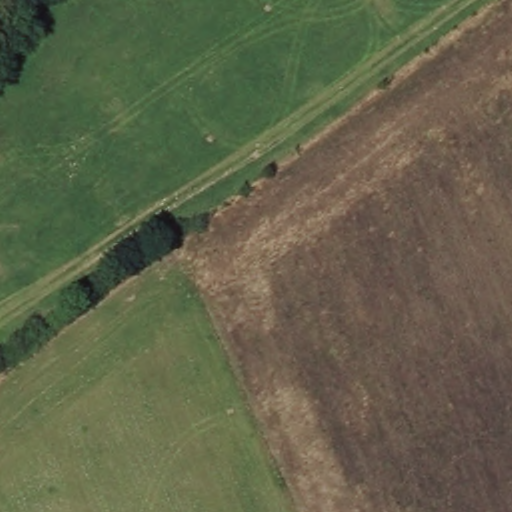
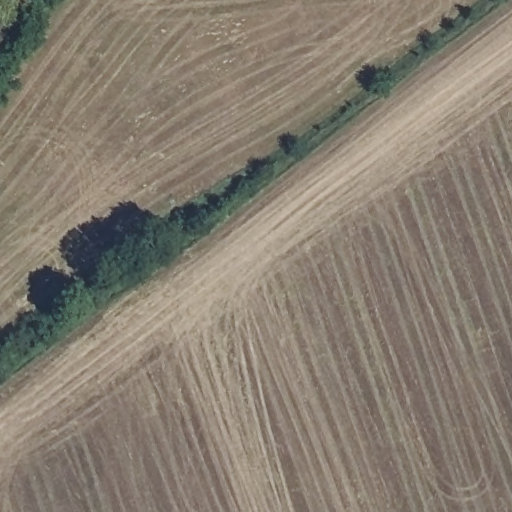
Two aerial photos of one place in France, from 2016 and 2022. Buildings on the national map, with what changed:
[]

